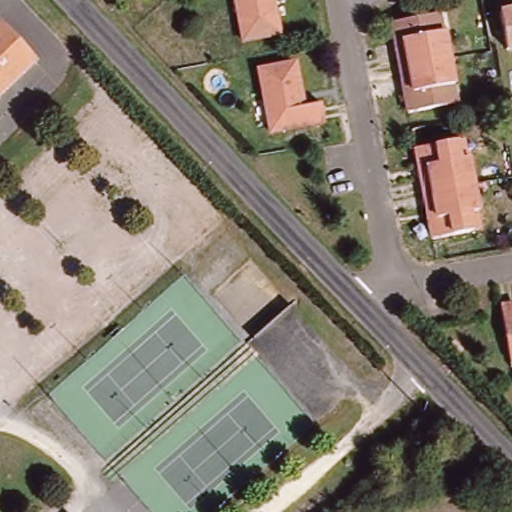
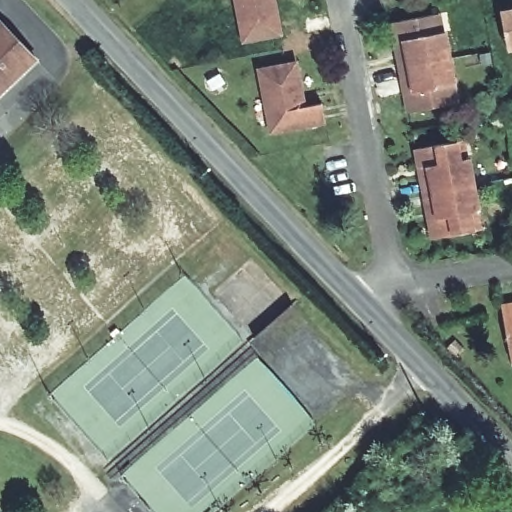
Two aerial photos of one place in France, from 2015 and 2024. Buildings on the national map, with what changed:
unchanged [(235,0),(273,0),(279,38),(241,43),(235,0)]
unchanged [(508,50),(503,21),(502,14),(512,12),(512,49),(508,50)]
unchanged [(411,112),(394,24),(434,17),(444,16),(448,36),(457,80),(461,104),(451,105),(411,112)]
unchanged [(41,62),(0,99),(0,26),(6,21),(41,62)]
unchanged [(304,107),(316,105),(319,125),(270,133),(261,71),(298,65),(304,107)]
unchanged [(472,230),(434,237),(415,150),(453,143),(464,142),(468,160),(479,210),(482,228),(472,230)]
unchanged [(510,356),(502,306),(512,304),(512,356),(510,356)]

